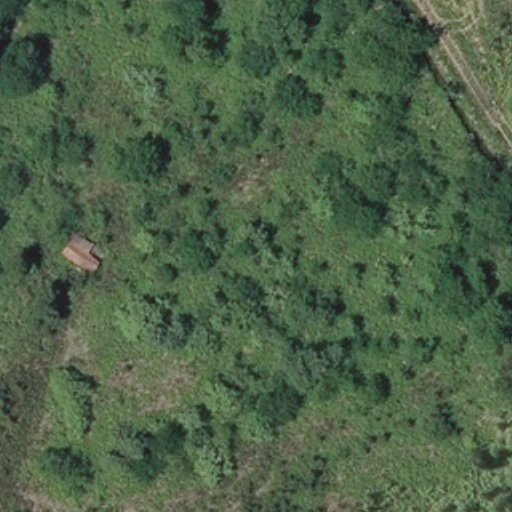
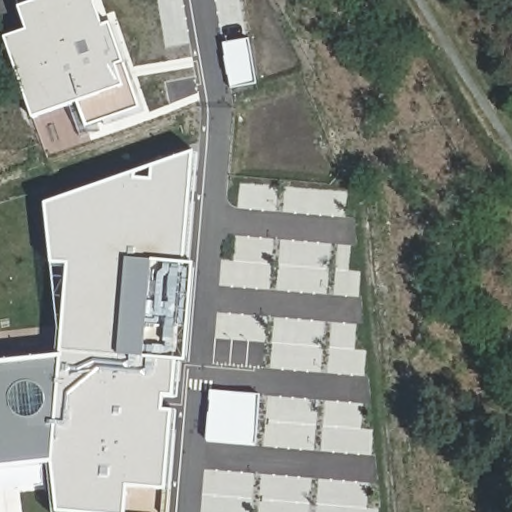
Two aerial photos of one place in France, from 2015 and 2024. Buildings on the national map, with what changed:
new [(111,22),(126,62),(141,107),(87,127),(77,102),(33,118),(5,38),(27,29),(19,7),(20,6),(17,0),(94,0),(104,26),(111,22)]
new [(257,82),(231,87),(222,44),(249,40),(257,82)]
new [(186,262),(195,264),(187,362),(176,361),(174,396),(164,396),(162,410),(174,411),(167,490),(164,512),(58,512),(57,512),(52,462),(0,468),(0,361),(59,354),(62,330),(68,264),(52,262),(45,203),(195,151),(186,262)]
demolished [(74,233),(106,253),(90,279),(58,257),(74,233)]
new [(211,391),(259,395),(255,445),(207,442),(211,391)]

